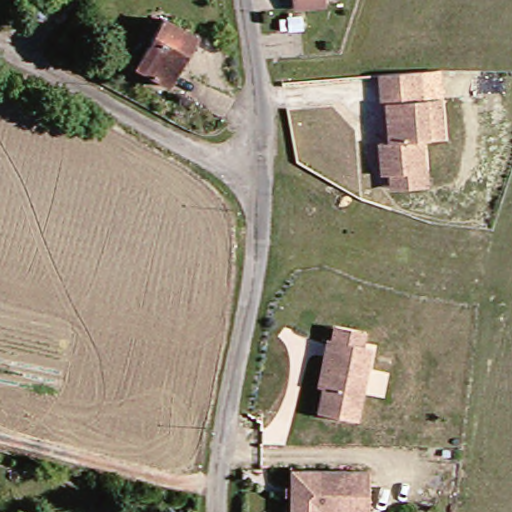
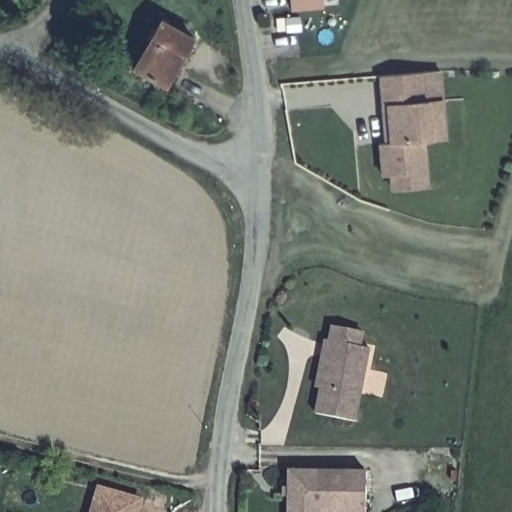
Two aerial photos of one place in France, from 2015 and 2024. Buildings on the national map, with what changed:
unchanged [(322,6),(289,10),(288,0),(321,0),(322,6)]
unchanged [(203,35),(176,83),(144,65),(171,18),(203,35)]
unchanged [(390,189),(389,175),(383,175),(381,143),(392,142),(389,105),(384,105),(382,75),(398,75),(419,73),(421,100),(426,100),(440,99),(443,140),(429,141),(421,141),(424,173),(425,187),(390,189)]
unchanged [(322,402),(334,337),(336,337),(338,323),(367,328),(364,343),(374,345),(364,397),(369,398),(368,404),(365,419),(320,410),(322,402)]
unchanged [(367,470),(367,512),(289,512),(289,469),(355,469),(367,470)]
new [(89,512),(97,485),(145,500),(141,512),(89,512)]

